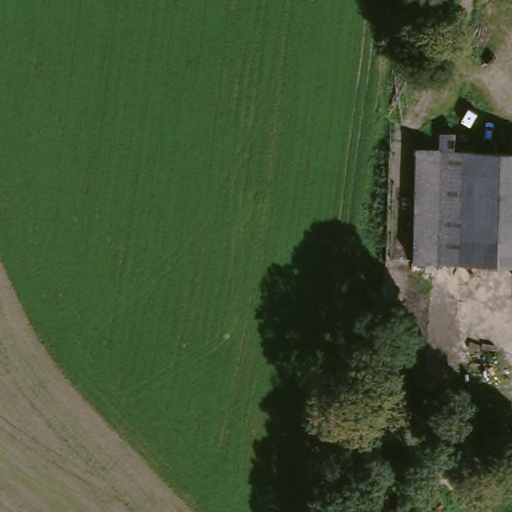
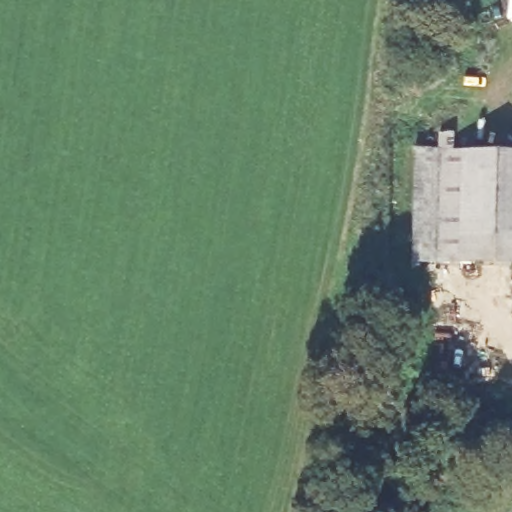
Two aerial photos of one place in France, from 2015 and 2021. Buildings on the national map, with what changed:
unchanged [(426,265),(427,252),(434,157),(435,139),(451,140),(450,157),(512,160),(512,270),(426,265)]
unchanged [(426,265),(403,264),(410,155),(429,157),(434,157),(427,252),(426,265)]

